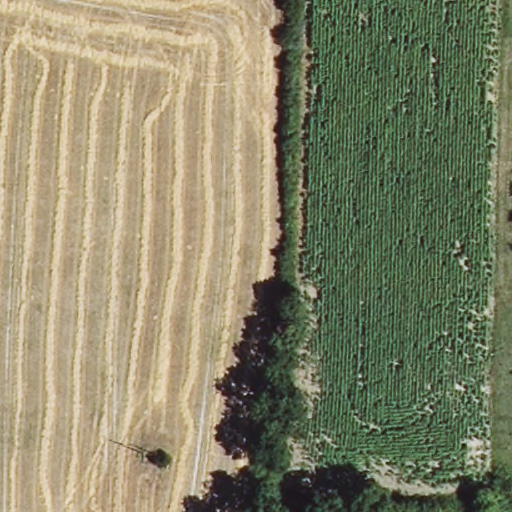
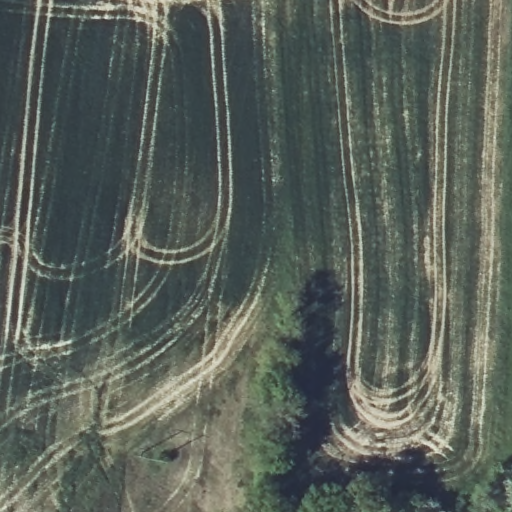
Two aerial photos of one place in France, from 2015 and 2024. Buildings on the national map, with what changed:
[]

